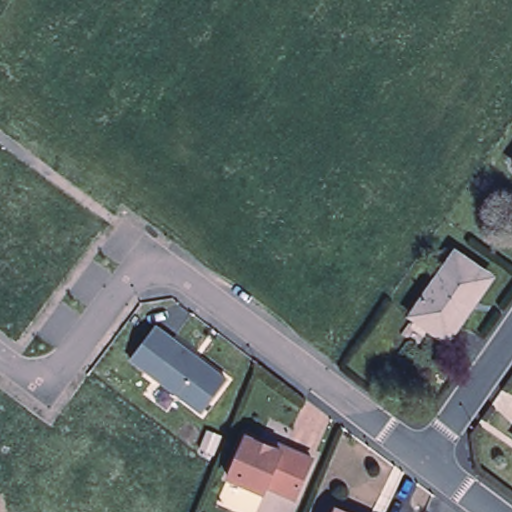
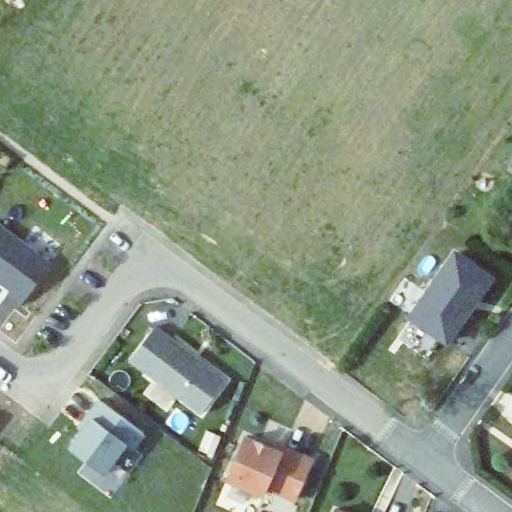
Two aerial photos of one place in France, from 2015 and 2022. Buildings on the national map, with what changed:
new [(24,299),(0,282),(0,227),(46,263),(24,299)]
unchanged [(488,275),(456,320),(460,322),(446,340),(410,315),(455,252),(488,275)]
unchanged [(226,379),(201,413),(130,359),(155,325),(226,379)]
new [(79,427),(88,414),(100,399),(145,434),(133,449),(126,443),(105,473),(70,447),(83,430),(79,427)]
unchanged [(294,499),(266,486),(262,494),(226,478),(245,436),(265,444),(266,439),(281,447),(311,459),(294,499)]
unchanged [(343,512),(333,512),(334,509),(343,512)]

